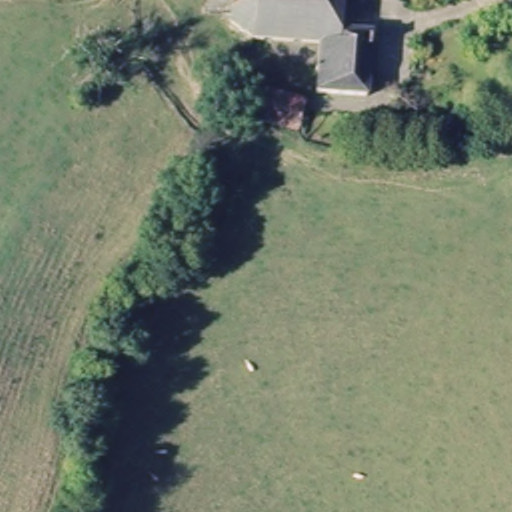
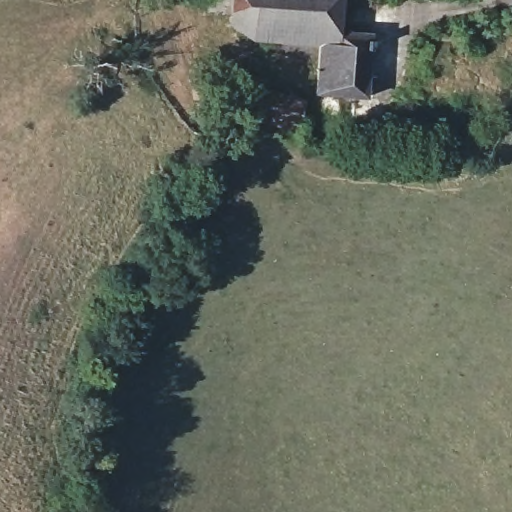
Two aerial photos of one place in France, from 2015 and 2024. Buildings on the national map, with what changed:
unchanged [(341,25),(386,23),(387,40),(368,41),(371,93),(323,96),(320,47),(252,49),(224,38),(224,0),(342,0),(341,25)]
unchanged [(396,3),(388,0),(397,0),(396,3)]
unchanged [(242,112),(247,88),(270,91),(269,101),(311,108),(309,118),(303,140),(258,129),(259,117),(250,116),(242,112)]

